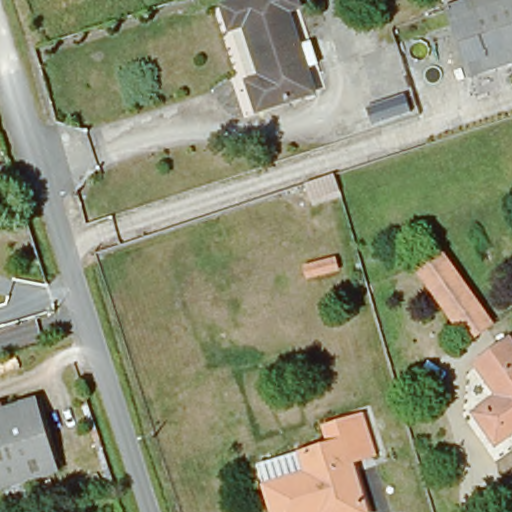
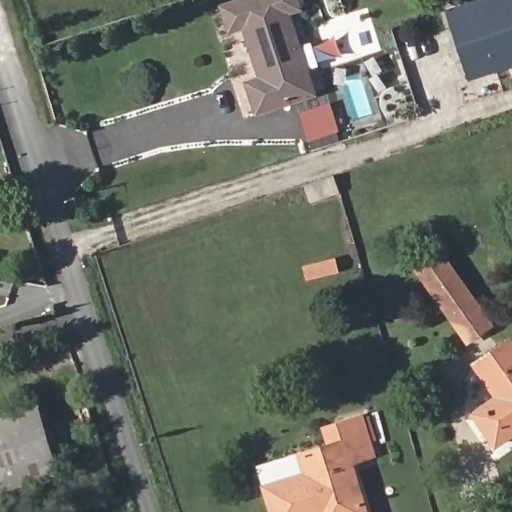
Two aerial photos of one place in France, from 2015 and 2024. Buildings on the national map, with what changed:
unchanged [(247,89),(260,85),(246,35),(232,39),(224,15),(270,0),(297,0),(302,16),(290,21),(313,98),(255,116),(247,89)]
unchanged [(512,0),(512,69),(465,82),(446,9),(478,0),(512,0)]
new [(341,142),(312,150),(307,142),(298,111),(332,103),(339,131),(341,142)]
unchanged [(472,334),(422,260),(442,246),(493,319),(472,334)]
unchanged [(335,260),(338,271),(309,281),(304,270),(335,260)]
unchanged [(500,445),(476,413),(501,395),(477,364),(512,339),(512,436),(500,445)]
unchanged [(0,496),(0,417),(38,406),(60,477),(0,496)]
unchanged [(330,445),(323,426),(360,415),(374,456),(348,466),(363,511),(360,512),(271,512),(263,490),(306,476),(298,455),(330,445)]

